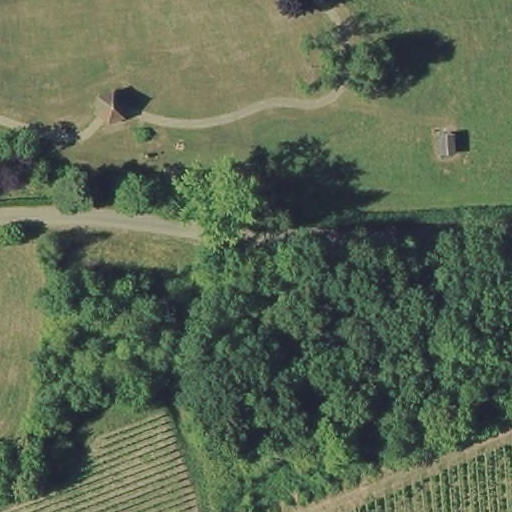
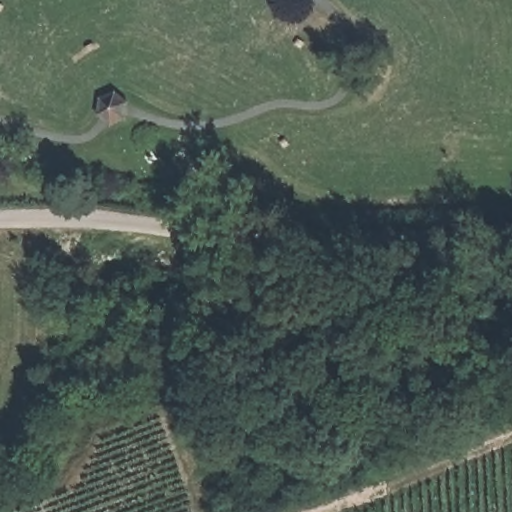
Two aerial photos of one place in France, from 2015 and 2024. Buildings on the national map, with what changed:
unchanged [(122,90),(135,100),(133,116),(118,123),(105,114),(106,96),(122,90)]

